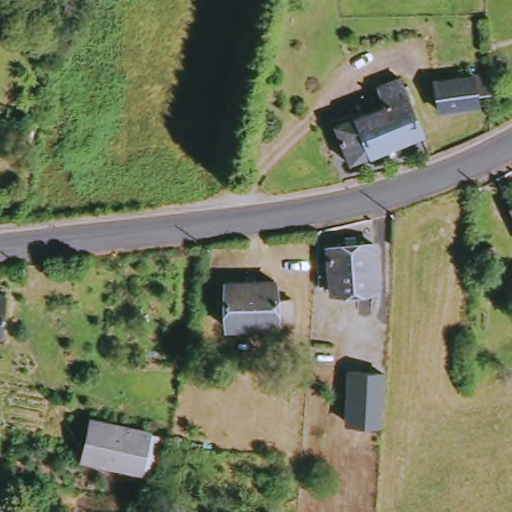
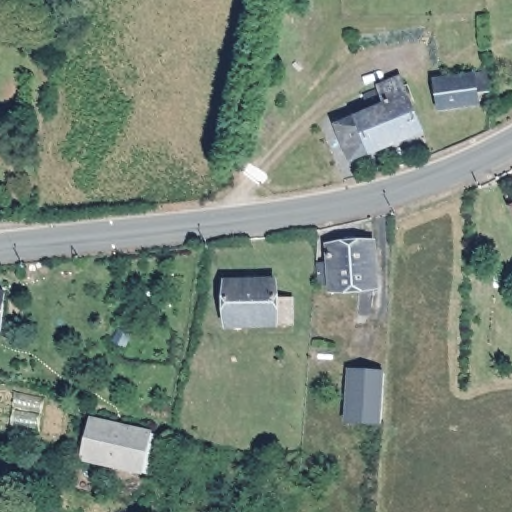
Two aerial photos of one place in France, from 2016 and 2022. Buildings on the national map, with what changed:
unchanged [(479,91),(480,101),(439,110),(435,81),(492,72),(492,90),(479,91)]
unchanged [(357,159),(343,121),(375,109),(372,94),(387,89),(385,84),(407,76),(428,130),(357,159)]
unchanged [(385,286),(341,291),(340,282),(328,283),(325,264),(336,263),(335,246),(352,244),(351,236),(361,235),(362,243),(379,241),(385,286)]
unchanged [(227,330),(222,285),(272,279),(275,296),(292,296),(295,321),(227,330)]
unchanged [(0,332),(0,293),(10,295),(7,333),(0,332)]
unchanged [(382,394),(380,423),(345,421),(347,371),(383,373),(382,394)]
unchanged [(94,461),(105,421),(161,436),(152,474),(94,461)]

